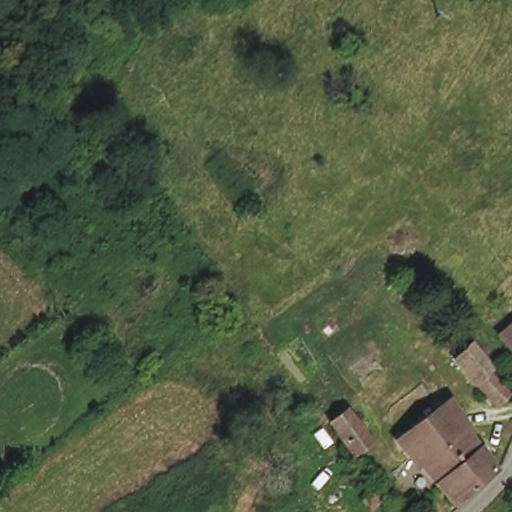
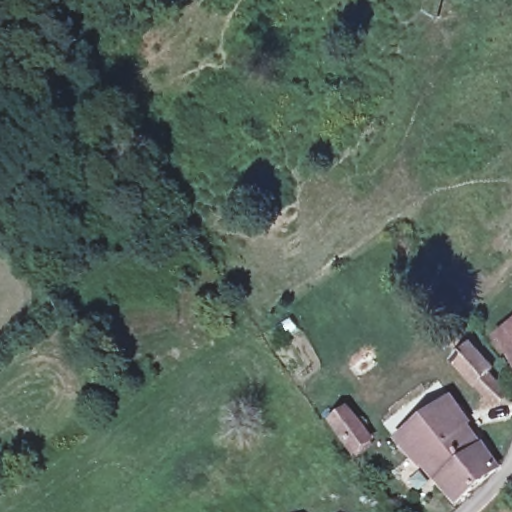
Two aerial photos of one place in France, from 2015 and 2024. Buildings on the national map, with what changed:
unchanged [(512,331),(512,351),(503,338),(512,331)]
unchanged [(446,356),(469,332),(511,386),(494,402),(446,356)]
unchanged [(390,439),(448,393),(498,465),(450,506),(390,439)]
unchanged [(331,418),(329,416),(347,406),(366,438),(349,447),(331,418)]

